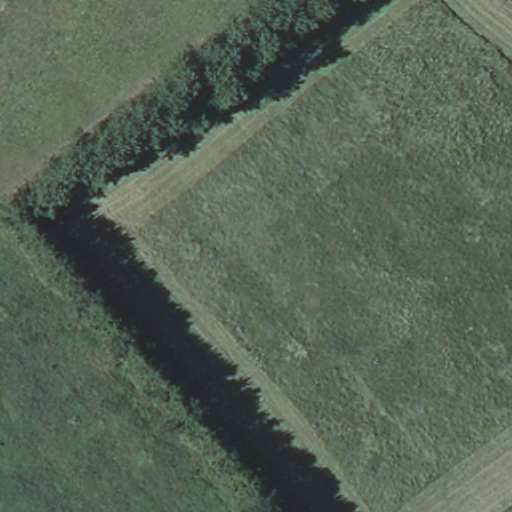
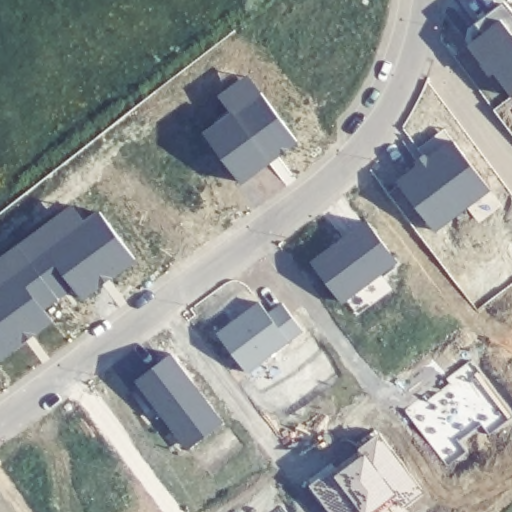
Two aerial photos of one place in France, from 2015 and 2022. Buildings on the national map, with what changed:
new [(503,4),(512,15),(512,35),(512,36),(512,101),(492,74),(489,77),(467,44),(482,35),(475,25),(503,4)]
new [(230,112),(219,96),(248,76),(299,147),(241,185),(203,130),(230,112)]
new [(452,143),(489,193),(435,235),(397,184),(452,143)]
new [(85,221),(97,211),(137,265),(84,302),(72,290),(43,311),(53,325),(0,364),(0,258),(72,204),(85,221)]
new [(367,222),(397,263),(340,304),(311,262),(367,222)]
new [(258,303),(265,316),(282,303),(302,331),(245,375),(213,336),(258,303)]
new [(170,357),(222,425),(185,453),(134,387),(170,357)]
new [(420,396),(425,402),(449,386),(442,380),(472,360),(512,411),(512,418),(489,435),(482,425),(459,438),(470,452),(447,465),(402,410),(420,396)]
new [(357,449),(377,435),(422,493),(404,510),(395,495),(374,512),(328,512),(311,487),(360,453),(357,449)]
new [(283,512),(272,512),(278,507),(283,512)]

